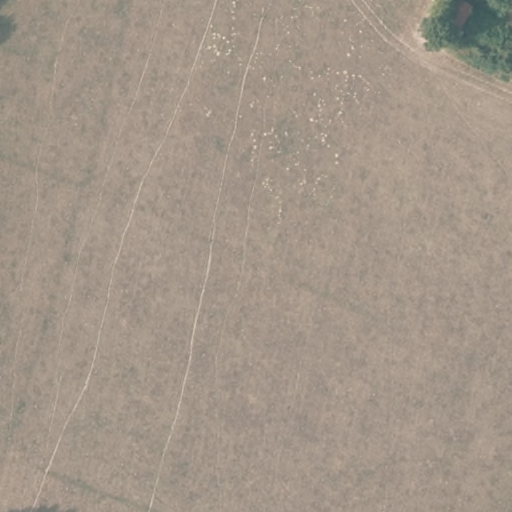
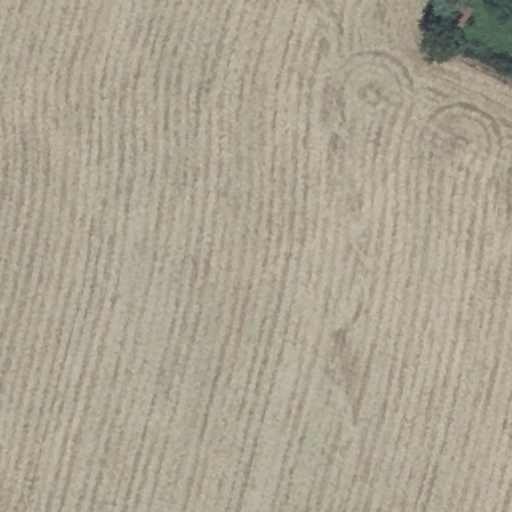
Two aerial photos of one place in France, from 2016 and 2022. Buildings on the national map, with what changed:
unchanged [(485,17),(473,41),(448,29),(460,4),(485,17)]

